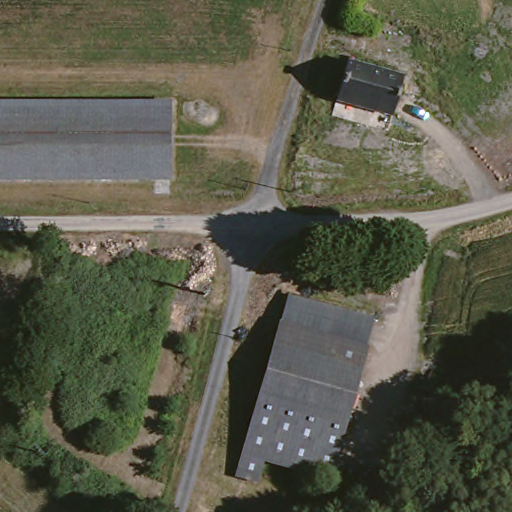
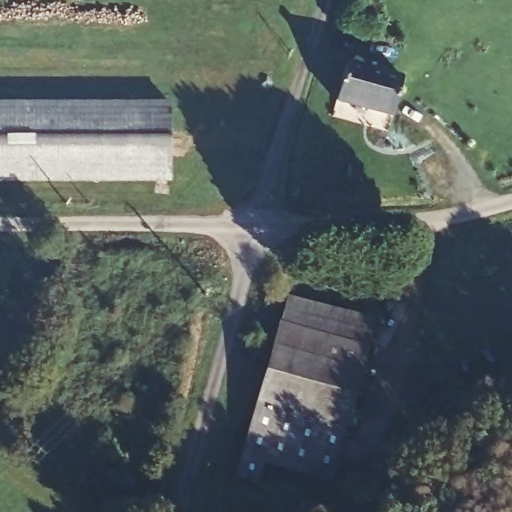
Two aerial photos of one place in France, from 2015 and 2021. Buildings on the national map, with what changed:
unchanged [(351,58),(403,79),(388,118),(336,99),(351,58)]
unchanged [(165,180),(0,181),(0,110),(163,109),(165,180)]
unchanged [(323,489),(256,471),(249,491),(228,486),(283,291),(377,316),(323,489)]

